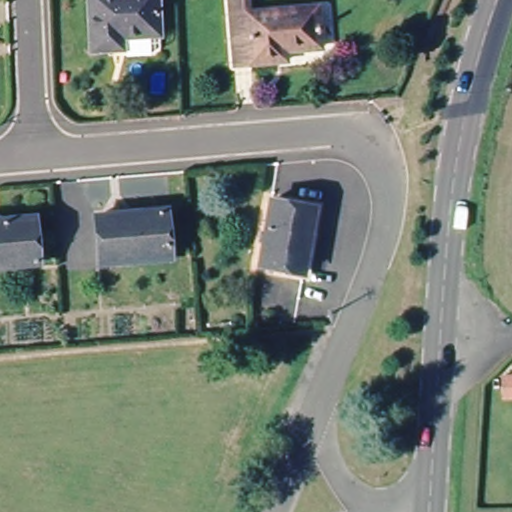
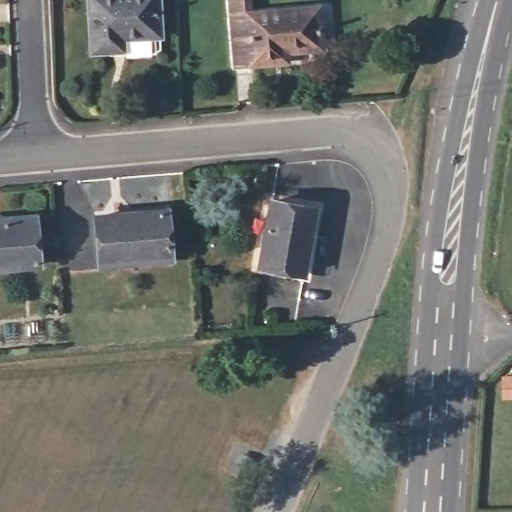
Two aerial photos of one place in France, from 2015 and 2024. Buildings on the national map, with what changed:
unchanged [(157,36),(122,37),(122,52),(95,53),(92,0),(156,0),(157,36)]
unchanged [(265,63),(230,64),(228,12),(318,5),(320,45),(286,47),(287,60),(265,63)]
unchanged [(304,284),(274,278),(276,267),(255,263),(266,199),(306,207),(302,233),(314,235),(304,284)]
unchanged [(177,261),(136,265),(135,253),(100,254),(97,209),(159,203),(161,234),(175,234),(177,261)]
unchanged [(40,266),(0,270),(0,222),(37,219),(40,266)]

